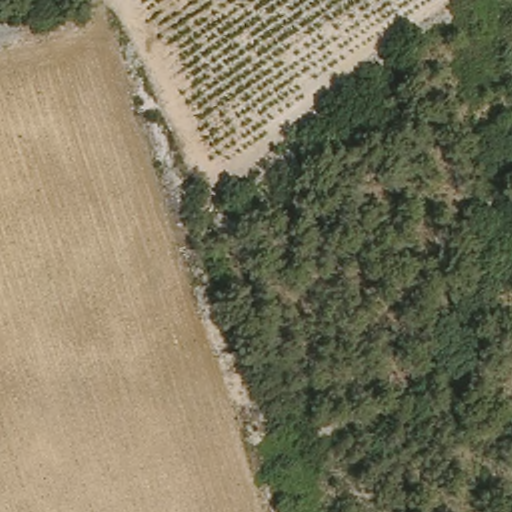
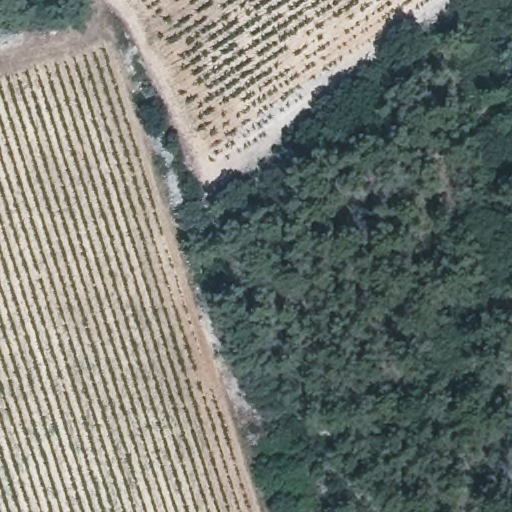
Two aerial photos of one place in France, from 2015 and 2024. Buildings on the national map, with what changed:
[]

